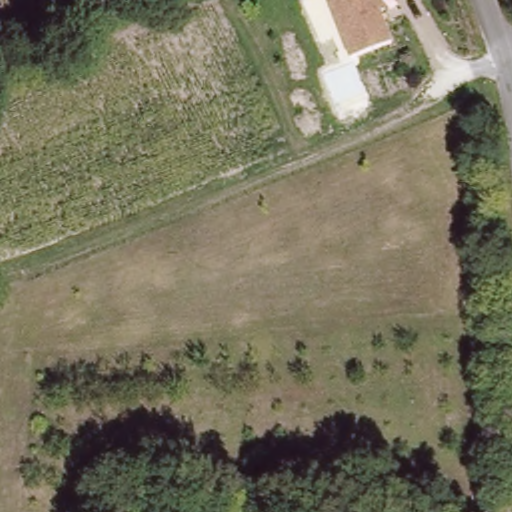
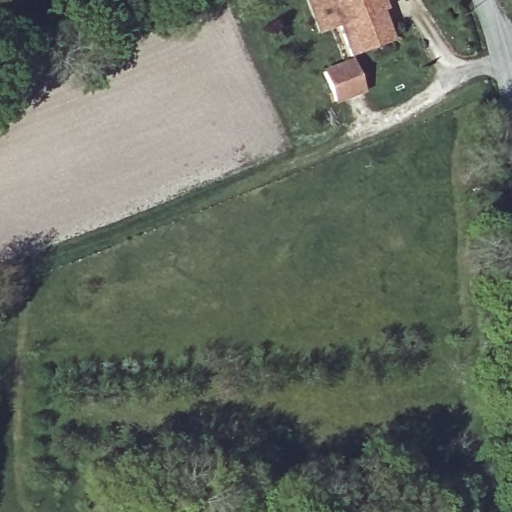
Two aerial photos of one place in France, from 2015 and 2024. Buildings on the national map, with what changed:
unchanged [(379,0),(392,40),(350,59),(338,28),(318,35),(305,3),(313,0),(379,0)]
new [(350,59),(364,91),(335,104),(323,70),(350,59)]

